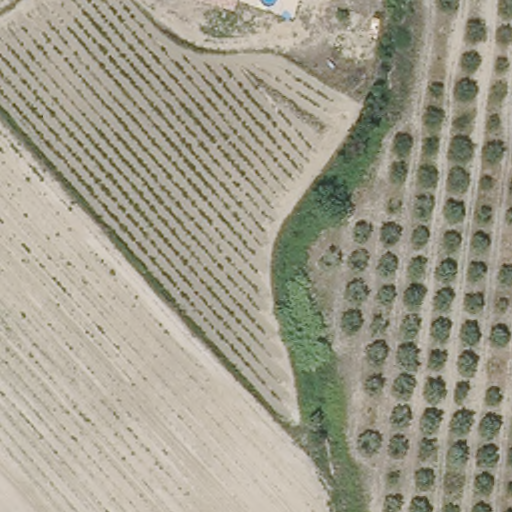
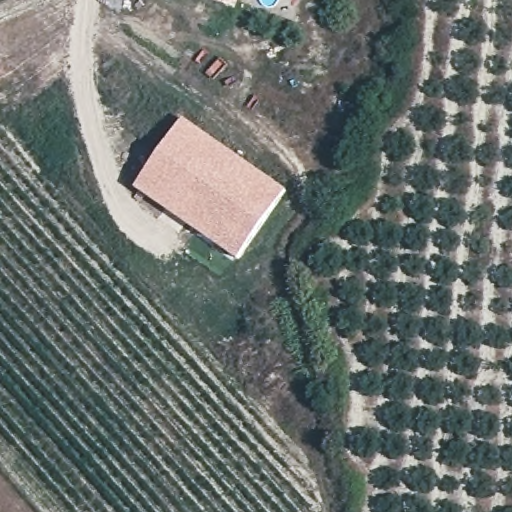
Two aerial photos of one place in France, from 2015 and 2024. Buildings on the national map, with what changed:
unchanged [(247,0),(245,6),(227,0),(247,0)]
new [(183,117),(287,189),(237,260),(134,187),(183,117)]

